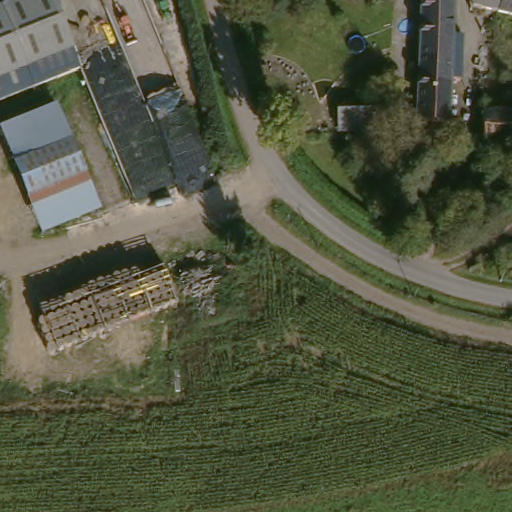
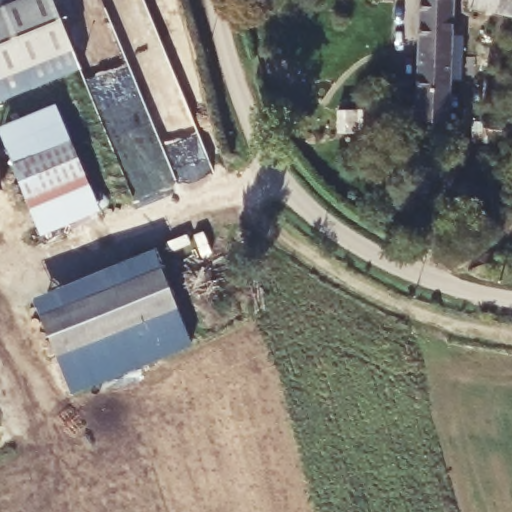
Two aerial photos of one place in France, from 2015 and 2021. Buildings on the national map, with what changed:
unchanged [(0,108),(0,0),(47,0),(80,79),(0,108)]
unchanged [(413,127),(414,111),(418,0),(451,0),(448,126),(413,127)]
unchanged [(496,18),(469,12),(469,0),(512,0),(512,21),(496,18)]
unchanged [(96,217),(41,238),(0,136),(0,130),(55,109),(96,217)]
unchanged [(379,130),(337,131),(338,111),(378,110),(379,130)]
unchanged [(512,123),(512,153),(479,157),(480,127),(512,123)]
new [(193,347),(121,377),(106,338),(57,358),(41,317),(163,268),(193,347)]

